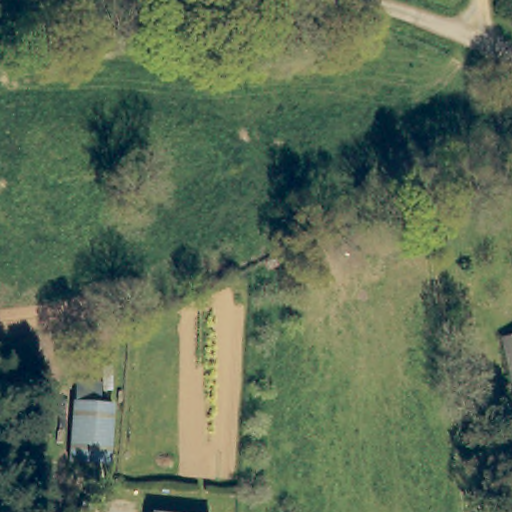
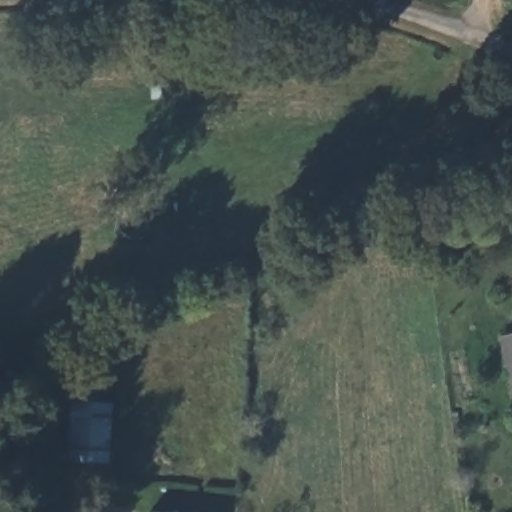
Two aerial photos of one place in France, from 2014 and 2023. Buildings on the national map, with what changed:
unchanged [(512,335),(512,397),(498,338),(512,335)]
unchanged [(107,405),(104,465),(85,463),(67,461),(73,403),(97,405),(107,405)]

